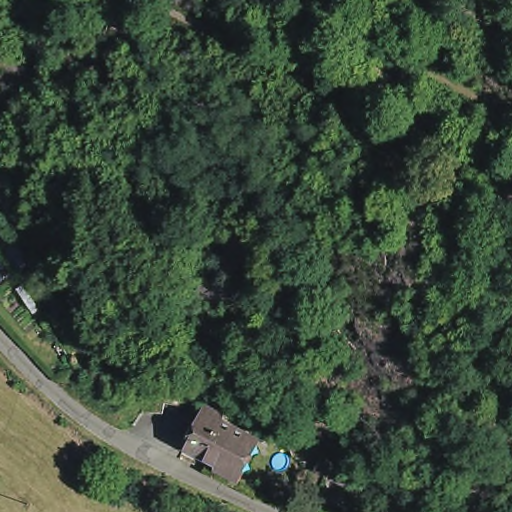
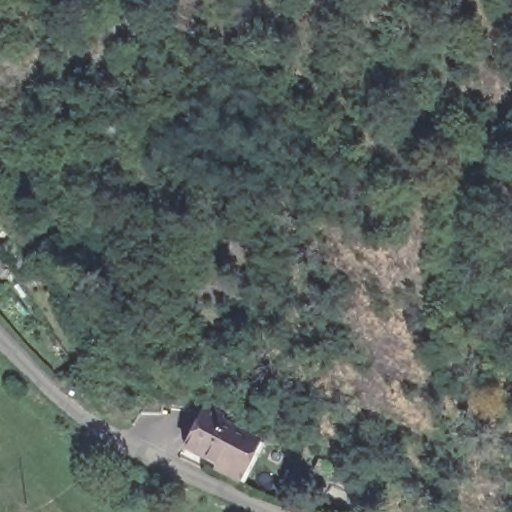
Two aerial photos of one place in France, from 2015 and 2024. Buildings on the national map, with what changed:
unchanged [(210,476),(212,471),(179,454),(197,418),(240,441),(250,446),(242,460),(245,462),(235,482),(232,488),(210,476)]
unchanged [(346,479),(345,481),(314,466),(315,463),(319,456),(350,472),(346,479)]

